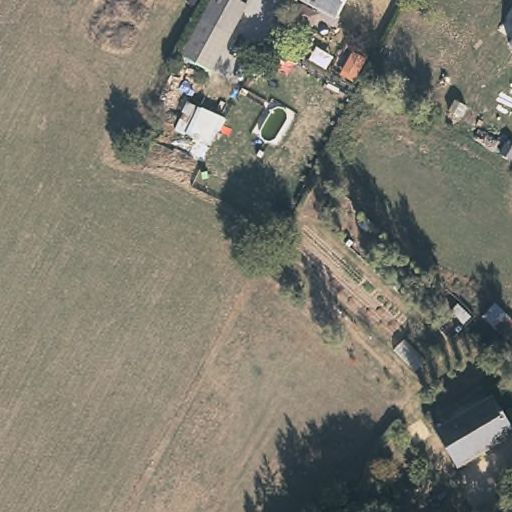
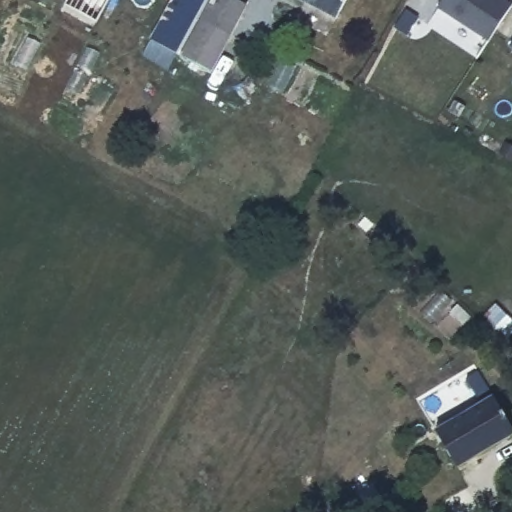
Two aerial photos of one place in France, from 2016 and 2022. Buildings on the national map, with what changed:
unchanged [(207,0),(228,0),(241,7),(207,73),(178,57),(207,0)]
unchanged [(336,15),(308,0),(343,0),(336,15)]
new [(491,42),(438,7),(443,0),(505,0),(512,4),(512,8),(491,42)]
unchanged [(511,47),(512,45),(512,48),(511,47)]
unchanged [(497,395),(512,422),(512,434),(457,464),(437,428),(497,395)]

